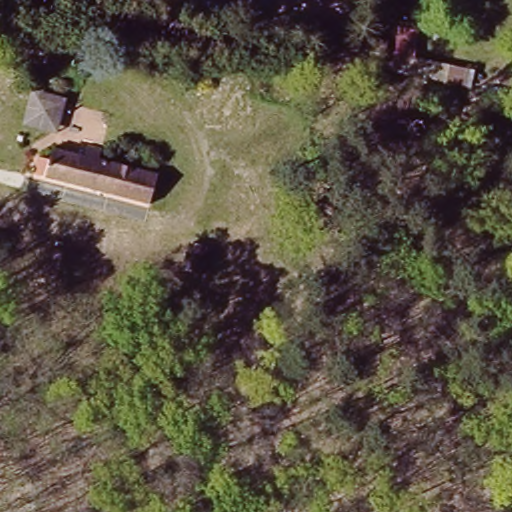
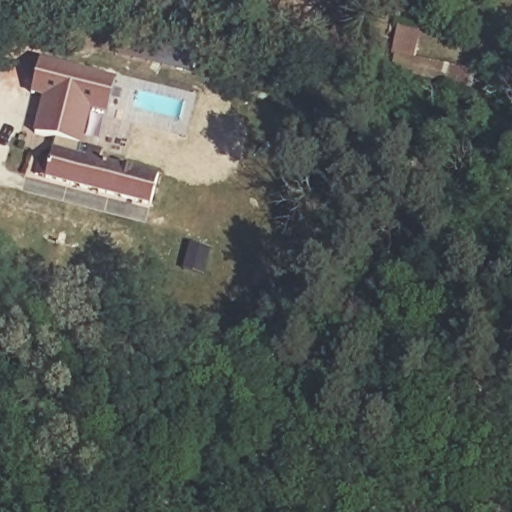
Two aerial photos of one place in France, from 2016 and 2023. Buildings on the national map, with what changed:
new [(107,114),(90,110),(80,150),(52,143),(53,139),(33,134),(41,99),(29,95),(38,58),(115,78),(107,114)]
unchanged [(150,205),(42,180),(52,143),(162,171),(150,205)]

